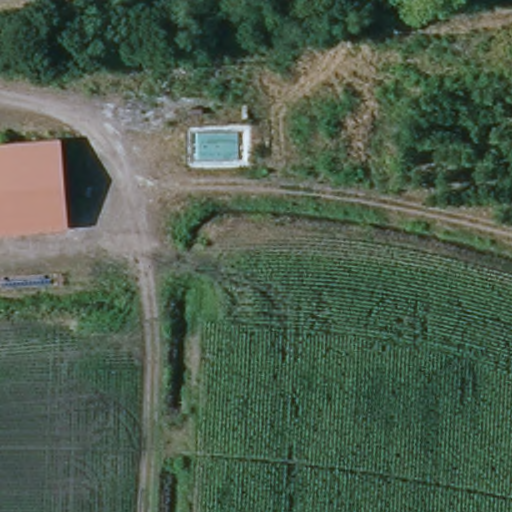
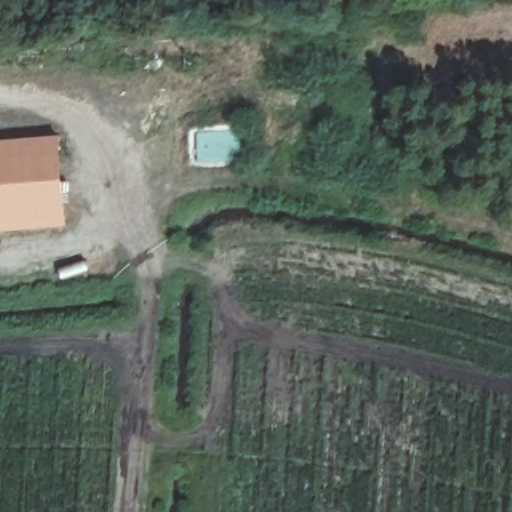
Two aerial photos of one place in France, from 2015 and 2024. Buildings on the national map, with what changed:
unchanged [(56,131),(66,225),(0,234),(0,139),(56,131)]

